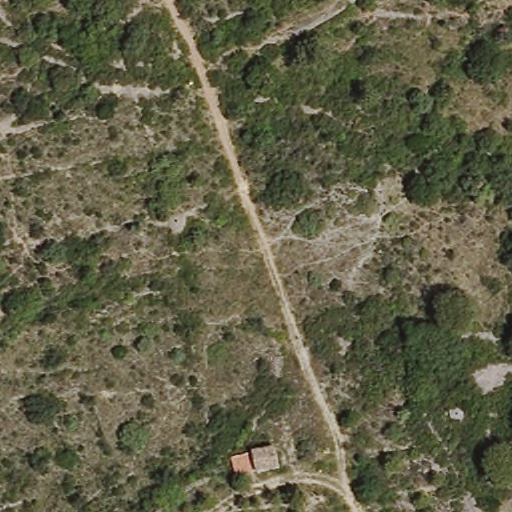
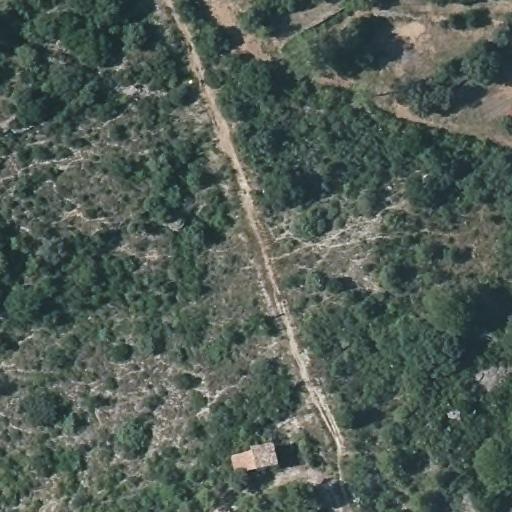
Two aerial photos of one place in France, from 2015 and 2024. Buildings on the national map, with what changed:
unchanged [(278,466),(257,472),(252,452),(274,447),(278,466)]

